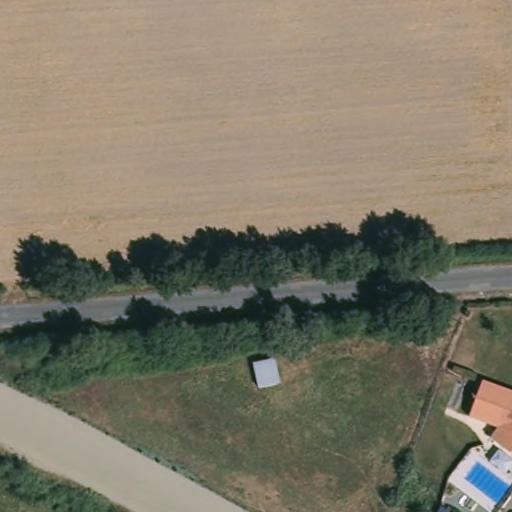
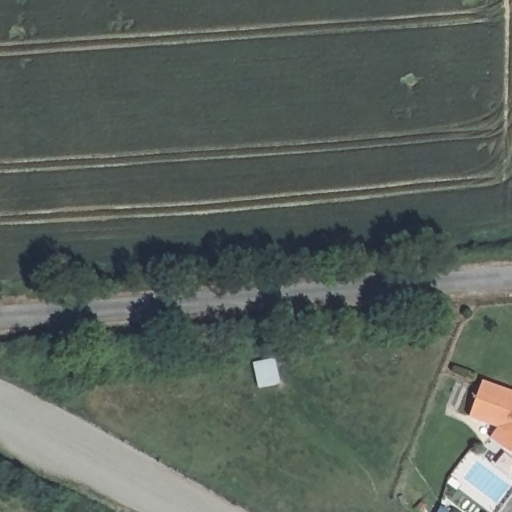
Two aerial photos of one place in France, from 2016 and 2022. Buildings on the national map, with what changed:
unchanged [(512,427),(509,434),(467,418),(484,380),(512,390),(512,427)]

